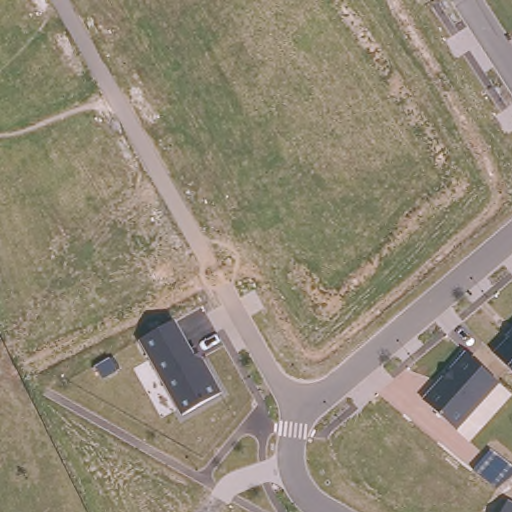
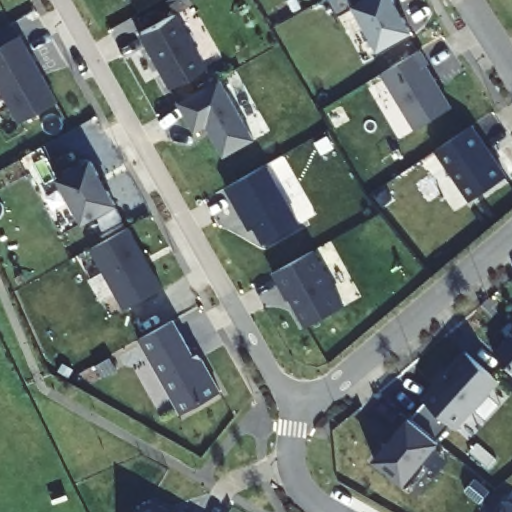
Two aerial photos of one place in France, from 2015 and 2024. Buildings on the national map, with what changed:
new [(391,2),(400,20),(403,18),(410,31),(379,47),(355,3),(362,0),(394,0),(391,2)]
new [(169,86),(141,33),(177,11),(205,64),(169,86)]
new [(0,88),(0,48),(22,35),(57,100),(19,123),(0,88)]
new [(421,49),(429,63),(426,65),(451,106),(415,128),(382,72),(421,49)]
new [(255,138),(224,154),(207,124),(194,130),(177,100),(220,77),(255,138)]
new [(470,200),(435,149),(472,123),(507,174),(470,200)]
new [(84,222),(58,178),(92,158),(117,204),(84,222)]
new [(264,164),(297,223),(262,243),(246,214),(242,217),(224,186),(264,164)]
new [(125,309),(92,248),(129,227),(162,286),(125,309)]
new [(346,303),(307,326),(291,295),(287,298),(273,271),(315,249),(346,303)]
unchanged [(217,392),(179,412),(137,340),(177,318),(217,392)]
unchanged [(487,350),(512,325),(512,373),(487,350)]
unchanged [(456,429),(419,397),(460,348),(497,380),(456,429)]
new [(405,414),(437,441),(419,464),(423,467),(407,487),(374,460),(395,434),(391,431),(405,414)]
unchanged [(503,496),(512,501),(512,512),(494,512),(503,496)]
new [(149,498),(171,512),(140,512),(149,498)]

